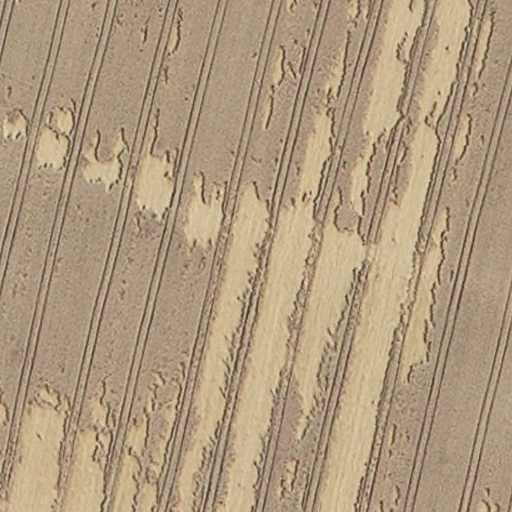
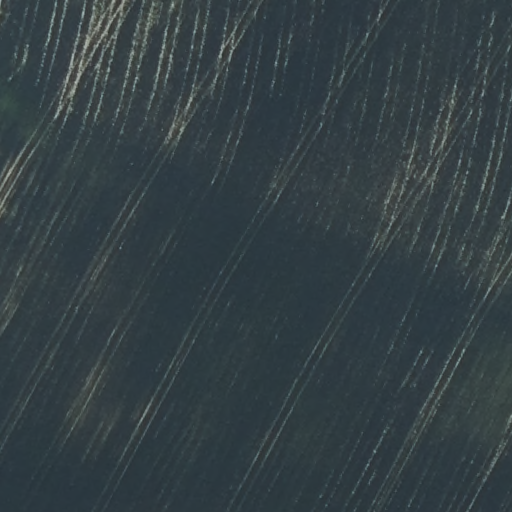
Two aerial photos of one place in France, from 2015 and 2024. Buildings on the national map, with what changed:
[]

